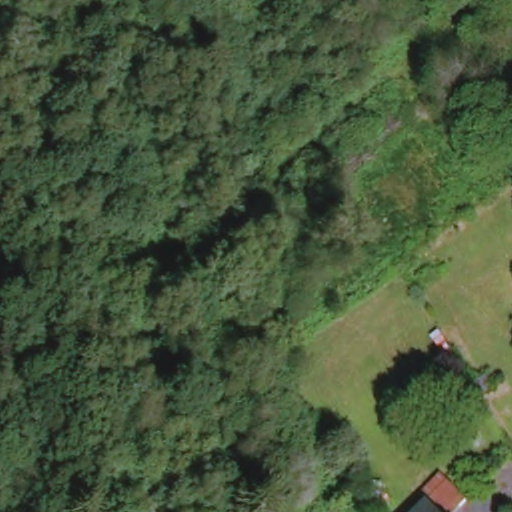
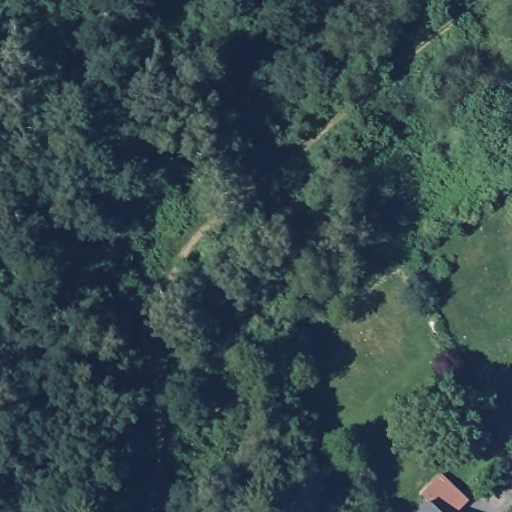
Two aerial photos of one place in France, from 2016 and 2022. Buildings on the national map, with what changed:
unchanged [(486,375),(494,389),(482,396),(474,383),(486,375)]
unchanged [(453,492),(470,510),(468,512),(429,512),(432,510),(453,492)]

